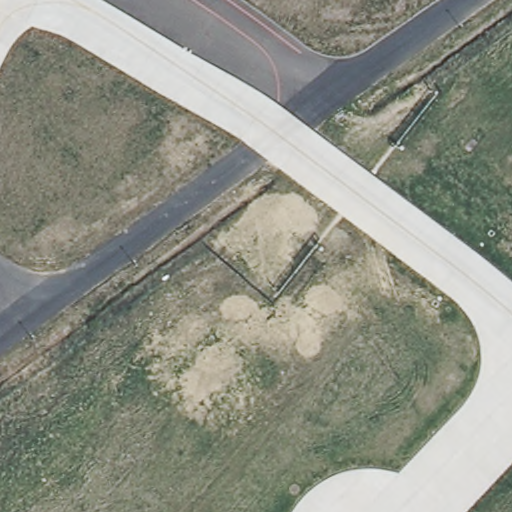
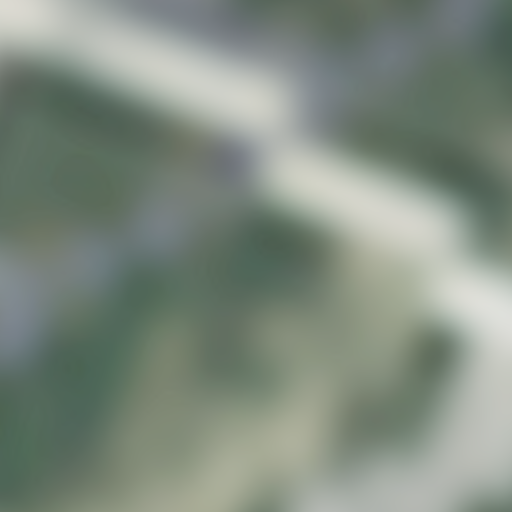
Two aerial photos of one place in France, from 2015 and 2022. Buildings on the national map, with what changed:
[]

